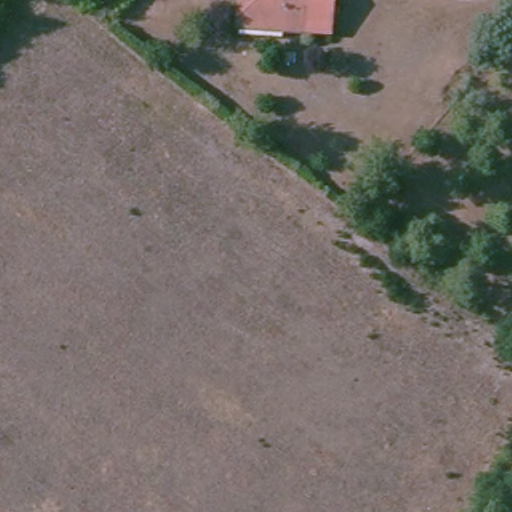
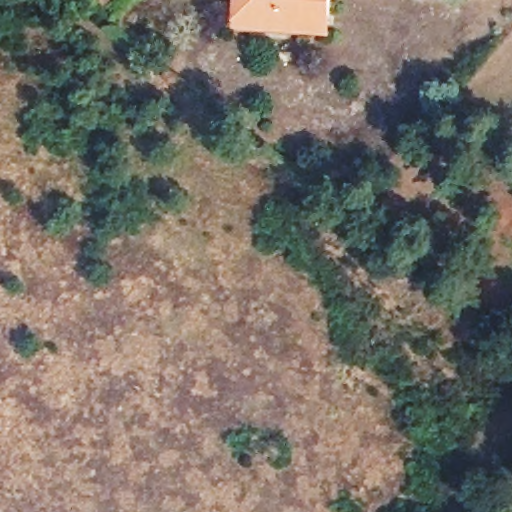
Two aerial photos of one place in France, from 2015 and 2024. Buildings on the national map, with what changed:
unchanged [(104,0),(124,0),(118,9),(107,2),(104,0)]
unchanged [(227,28),(229,15),(231,0),(322,0),(318,33),(294,30),(293,35),(227,28)]
unchanged [(510,470),(512,468),(512,472),(510,470)]

